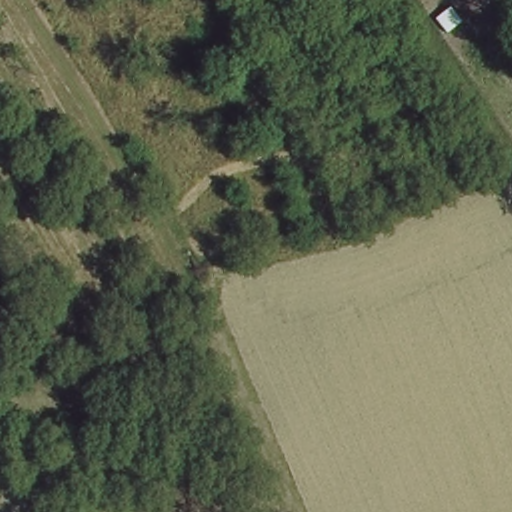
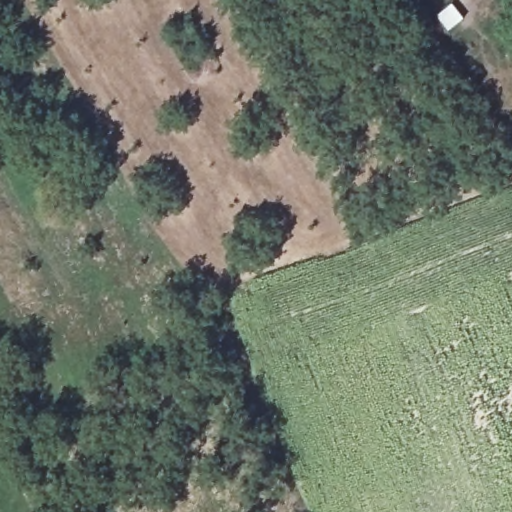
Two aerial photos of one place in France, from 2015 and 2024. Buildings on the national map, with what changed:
[]

